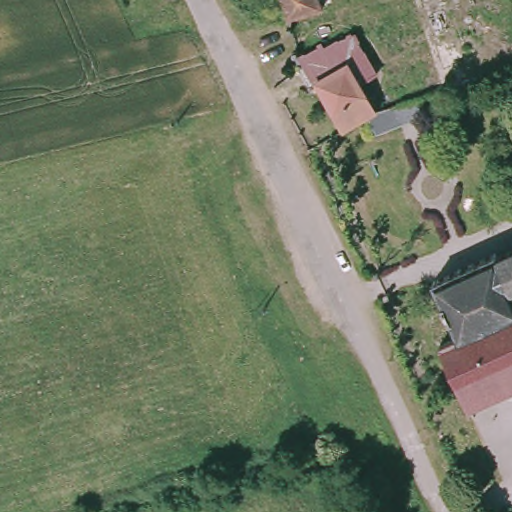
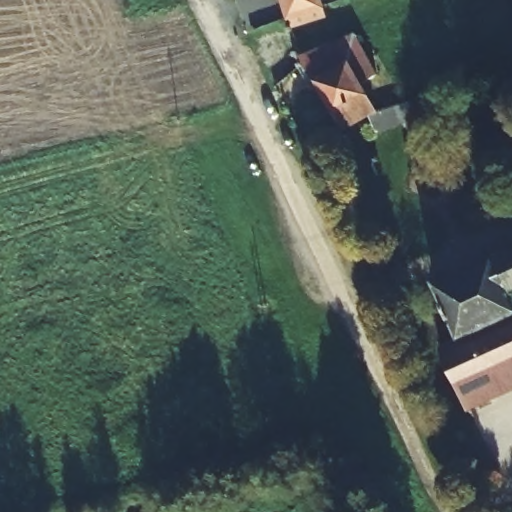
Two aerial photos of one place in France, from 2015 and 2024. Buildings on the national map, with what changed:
unchanged [(326,4),(290,16),(285,0),(325,0),(326,4)]
unchanged [(355,32),(377,73),(362,81),(338,42),(355,32)]
unchanged [(380,112),(373,117),(346,130),(318,80),(310,84),(299,56),(338,42),(380,112)]
unchanged [(380,112),(422,98),(429,116),(380,135),(373,117),(380,112)]
unchanged [(460,338),(435,282),(497,253),(500,258),(512,253),(512,317),(460,338)]
unchanged [(467,402),(440,347),(450,342),(460,338),(512,317),(512,391),(470,409),(467,402)]

